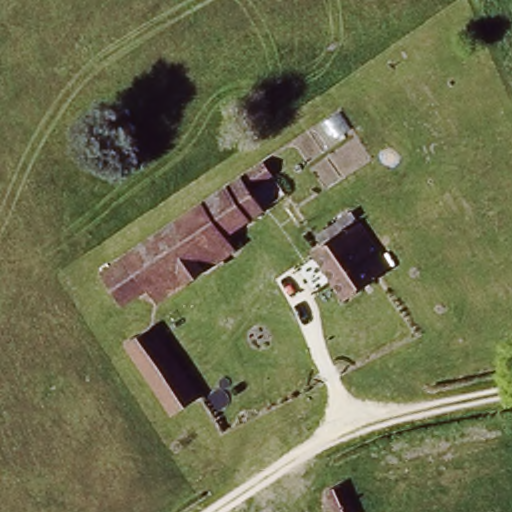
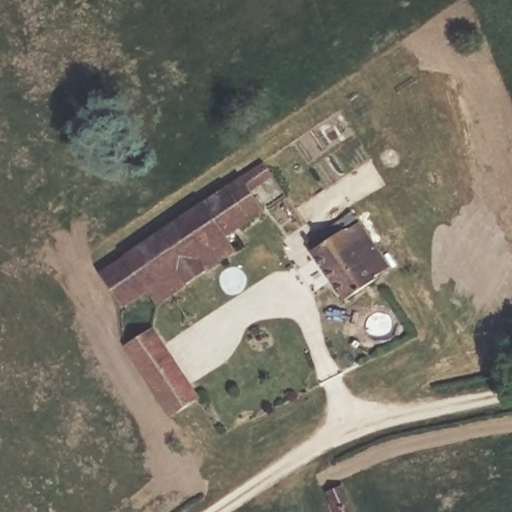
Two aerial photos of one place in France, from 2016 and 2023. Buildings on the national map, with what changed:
unchanged [(270,161),(283,184),(262,199),(269,214),(232,238),(240,251),(160,303),(152,292),(132,304),(109,269),(270,161)]
unchanged [(352,227),(362,239),(370,235),(395,270),(352,296),(321,246),(352,227)]
unchanged [(150,319),(207,410),(179,427),(122,337),(150,319)]
unchanged [(349,509),(350,512),(340,512),(327,492),(344,482),(356,505),(349,509)]

